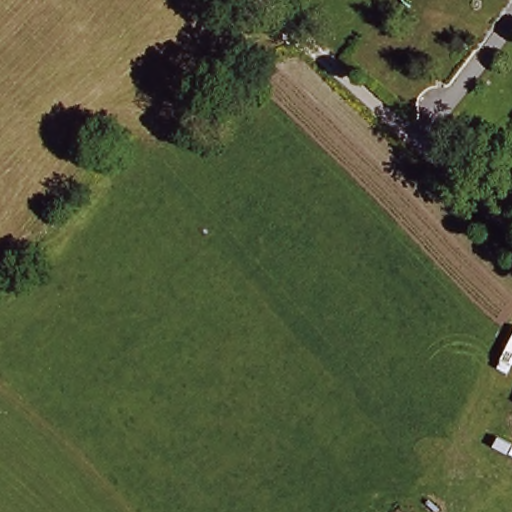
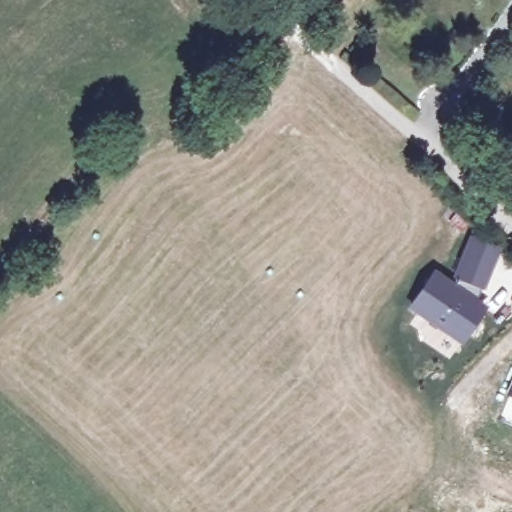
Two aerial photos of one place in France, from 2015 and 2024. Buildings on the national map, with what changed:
new [(470,231),(502,244),(489,280),(479,293),(450,278),(470,231)]
new [(435,267),(450,278),(479,293),(477,297),(488,307),(462,344),(407,307),(435,267)]

